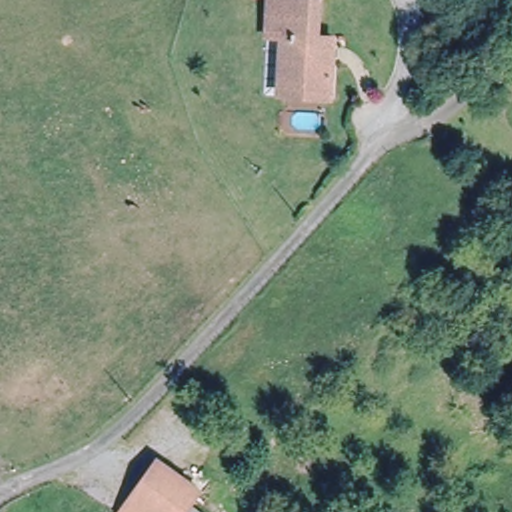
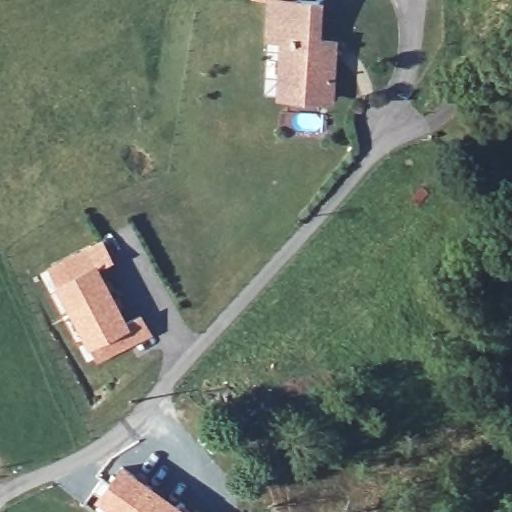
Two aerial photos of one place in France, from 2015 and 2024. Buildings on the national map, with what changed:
unchanged [(275,84),(278,41),(261,40),(264,0),(271,0),(298,2),(314,2),(312,42),(329,42),(326,87),(325,102),(274,98),(275,84)]
unchanged [(271,0),(298,0),(298,2),(271,0)]
unchanged [(477,170),(488,158),(510,177),(499,189),(477,170)]
new [(113,257),(98,263),(128,318),(141,311),(152,332),(97,362),(89,344),(55,279),(47,267),(102,236),(113,257)]
unchanged [(199,512),(117,512),(114,511),(152,457),(194,487),(185,500),(200,511),(199,512)]

